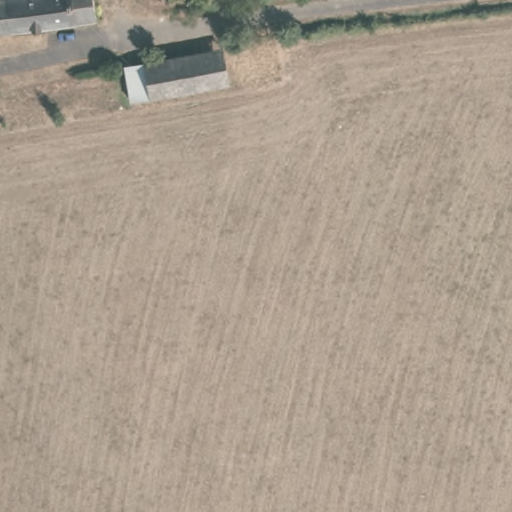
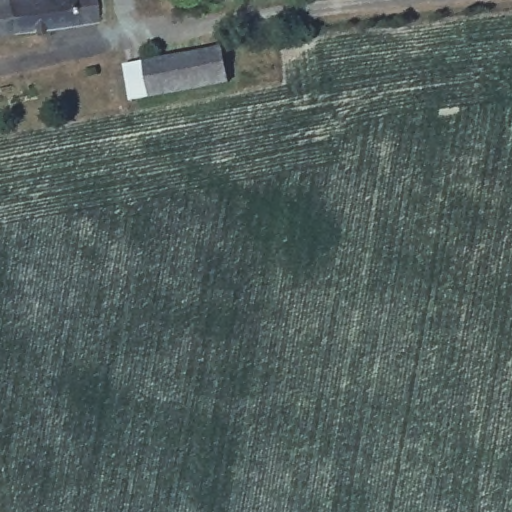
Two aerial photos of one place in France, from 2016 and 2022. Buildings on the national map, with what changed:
unchanged [(0,38),(0,0),(90,0),(94,26),(0,38)]
unchanged [(122,66),(226,46),(233,85),(129,104),(122,66)]

